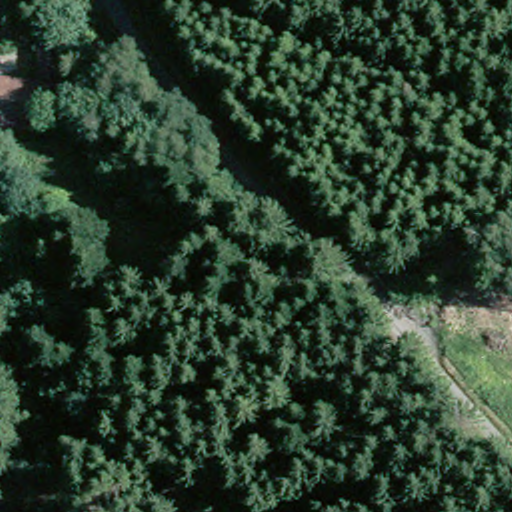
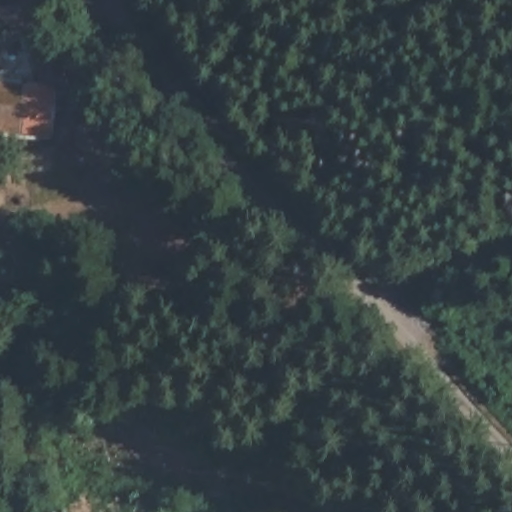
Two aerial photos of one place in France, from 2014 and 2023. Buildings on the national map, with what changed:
unchanged [(69,52),(62,84),(43,80),(45,48),(69,52)]
unchanged [(31,126),(10,125),(0,124),(0,79),(13,81),(36,83),(31,126)]

